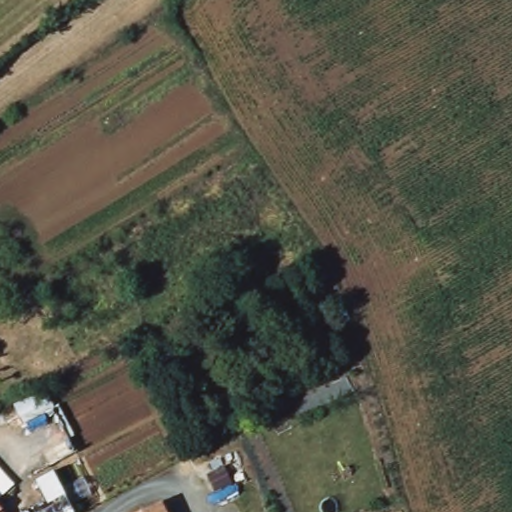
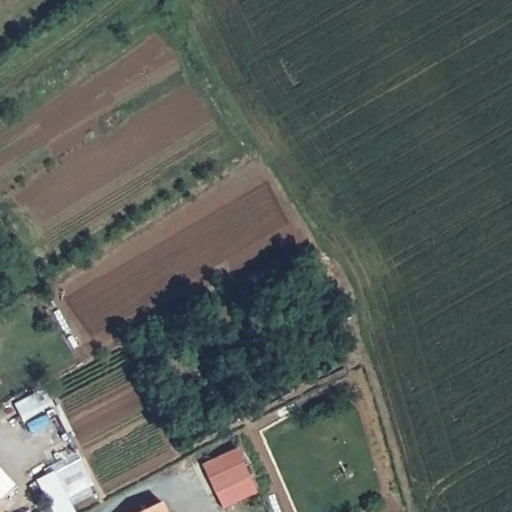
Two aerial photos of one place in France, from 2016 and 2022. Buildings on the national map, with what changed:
new [(201,463),(237,448),(257,492),(222,508),(201,463)]
unchanged [(165,499),(170,512),(138,512),(165,499)]
unchanged [(16,508),(19,512),(8,512),(16,508)]

